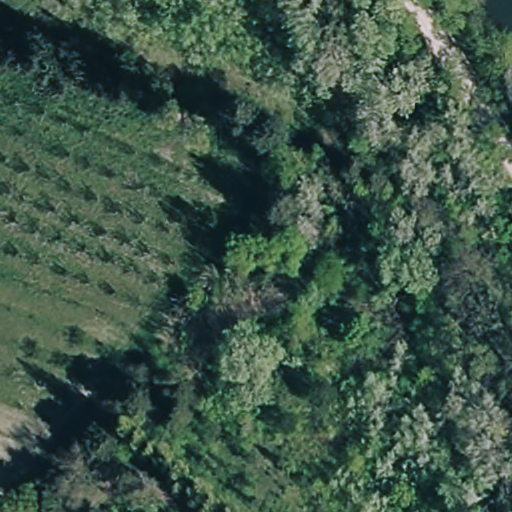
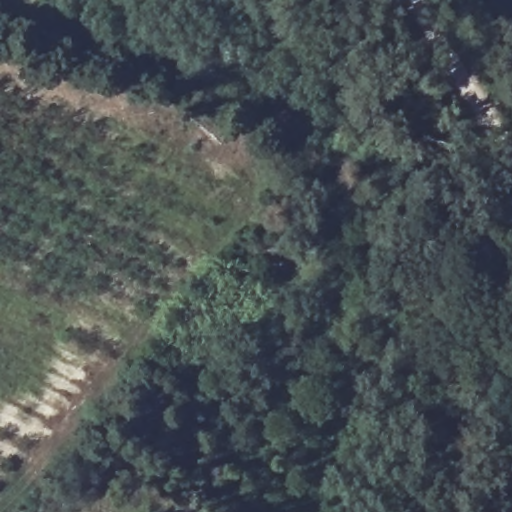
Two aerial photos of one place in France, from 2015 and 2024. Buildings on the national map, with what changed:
unchanged [(53,512),(43,512),(47,508),(53,512)]

